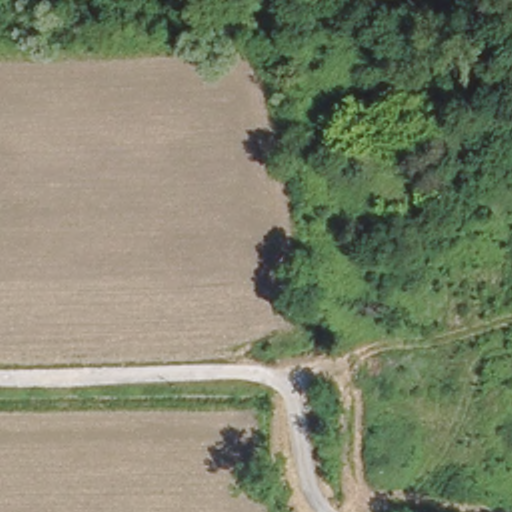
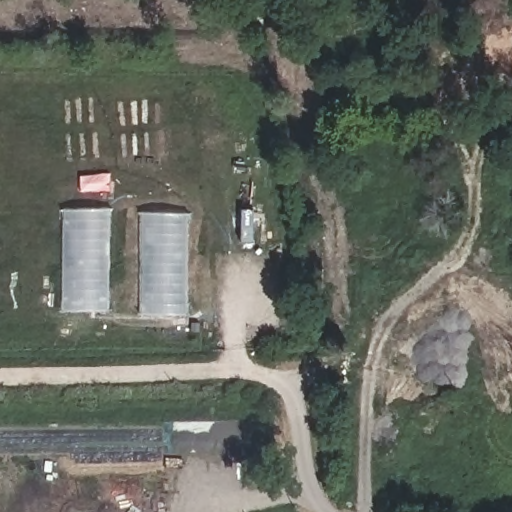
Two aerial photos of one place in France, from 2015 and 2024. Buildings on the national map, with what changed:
unchanged [(314,57),(415,73),(409,112),(307,98),(314,57)]
new [(110,209),(109,310),(62,311),(63,209),(110,209)]
new [(188,213),(188,314),(138,313),(139,212),(188,213)]

